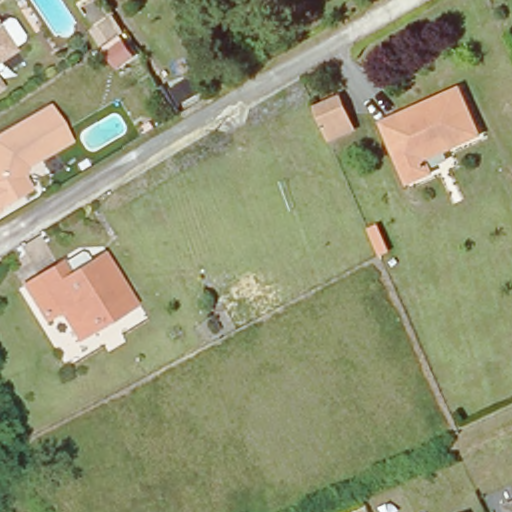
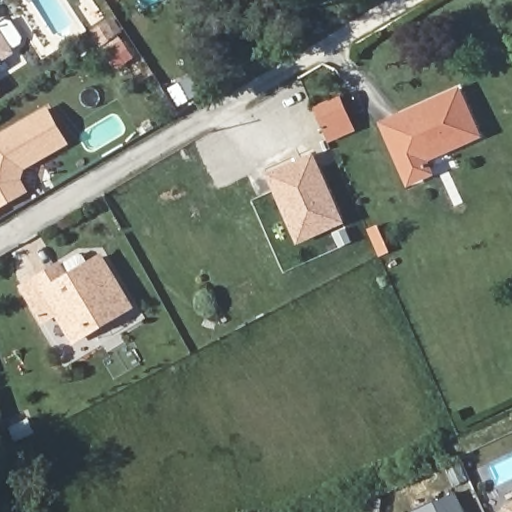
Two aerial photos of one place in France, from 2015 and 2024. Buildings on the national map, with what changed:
unchanged [(96,46),(85,29),(109,12),(120,31),(96,46)]
unchanged [(6,21),(11,23),(21,39),(20,44),(10,51),(11,54),(0,61),(0,25),(6,21)]
unchanged [(411,180),(386,127),(460,93),(485,146),(411,180)]
new [(330,140),(325,128),(317,110),(341,99),(350,117),(355,130),(330,140)]
unchanged [(30,179),(19,185),(0,196),(0,128),(40,104),(59,136),(29,155),(34,162),(30,179)]
new [(345,222),(297,244),(266,172),(315,151),(345,222)]
unchanged [(72,334),(55,304),(37,315),(19,284),(37,273),(57,261),(84,246),(90,258),(99,253),(128,301),(107,314),(91,323),(72,334)]
unchanged [(512,502),(512,512),(503,512),(501,507),(512,502)]

